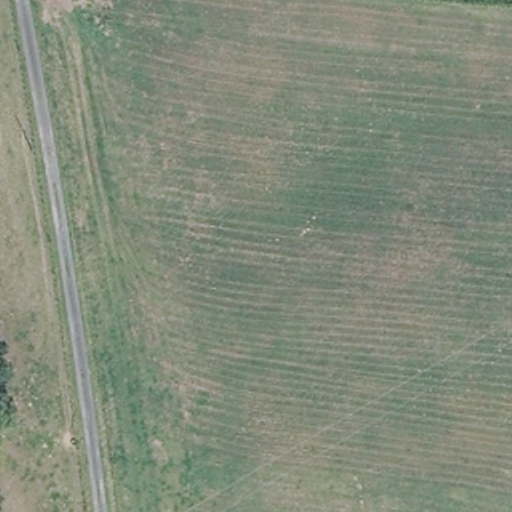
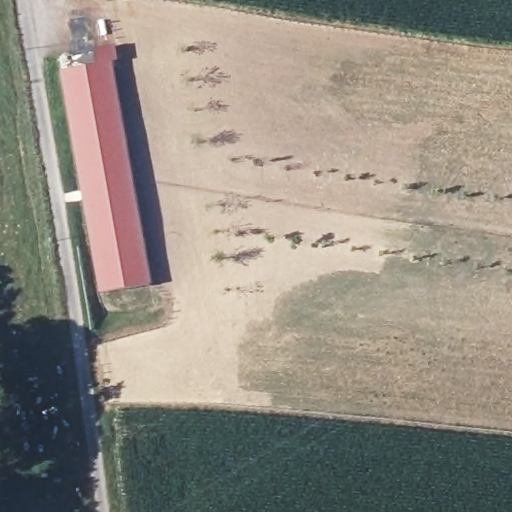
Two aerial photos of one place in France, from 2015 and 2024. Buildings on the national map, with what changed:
new [(95,65),(93,49),(115,45),(117,59),(111,60),(150,282),(99,291),(59,70),(95,65)]

